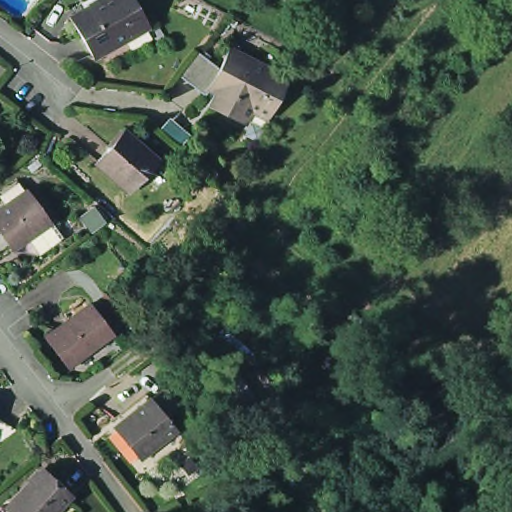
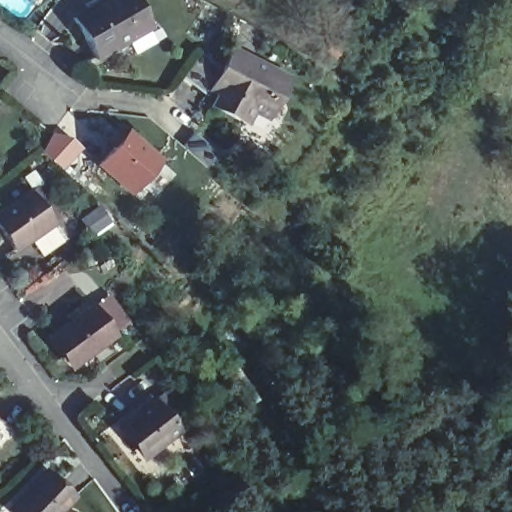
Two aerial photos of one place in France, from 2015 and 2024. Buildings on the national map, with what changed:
unchanged [(98,57),(75,18),(105,0),(137,0),(152,26),(98,57)]
unchanged [(249,108),(242,122),(213,109),(219,97),(207,92),(203,97),(178,79),(194,59),(218,70),(227,54),(283,82),(272,102),(265,115),(249,108)]
unchanged [(157,162),(131,195),(99,167),(125,135),(157,162)]
unchanged [(56,222),(50,226),(51,228),(16,254),(0,232),(0,216),(3,214),(0,210),(0,197),(18,183),(27,196),(28,197),(34,192),(56,222)]
unchanged [(58,337),(75,325),(70,320),(90,305),(93,311),(95,310),(98,312),(113,301),(130,323),(115,335),(118,339),(81,367),(75,372),(51,342),(58,337)]
unchanged [(141,465),(115,433),(131,420),(126,415),(142,403),(146,408),(160,397),(176,417),(163,428),(172,439),(141,465)]
unchanged [(0,436),(0,429),(6,432),(0,436)]
unchanged [(6,510),(11,505),(41,471),(70,497),(57,512),(9,512),(6,510)]

